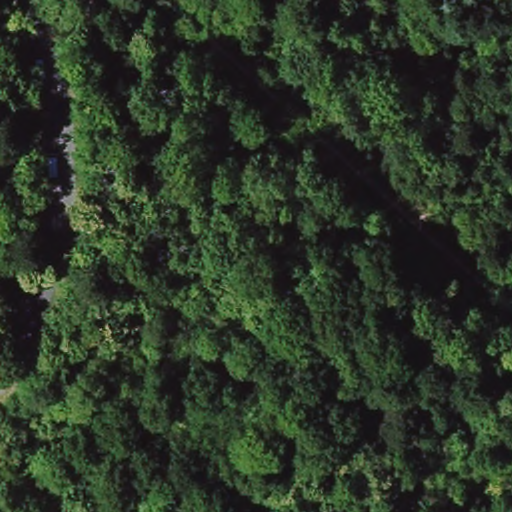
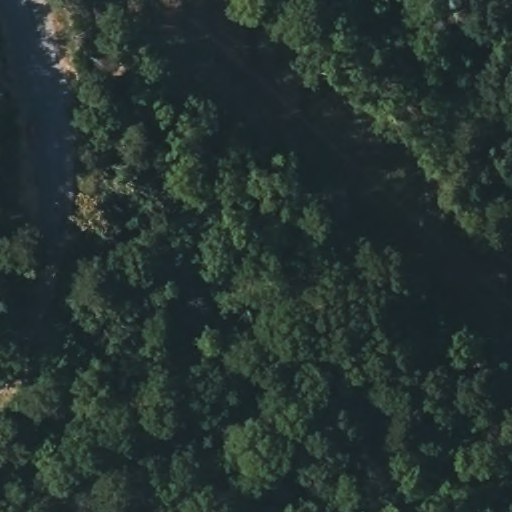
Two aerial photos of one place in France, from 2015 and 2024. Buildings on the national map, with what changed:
unchanged [(187,146),(189,130),(205,132),(204,142),(203,148),(187,146)]

